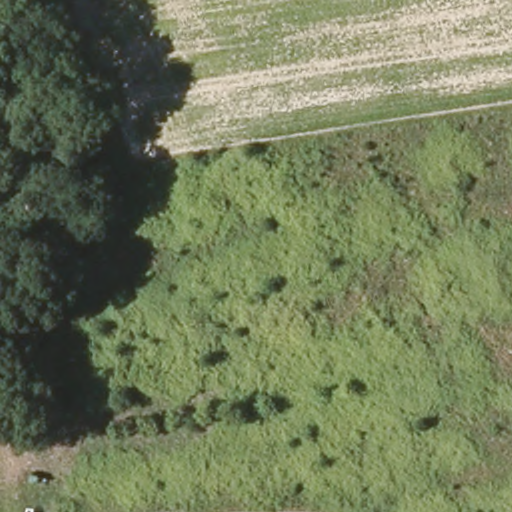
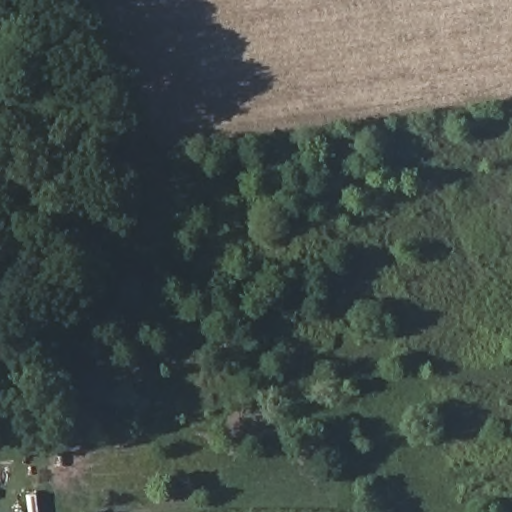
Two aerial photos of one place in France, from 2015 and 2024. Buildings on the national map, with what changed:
[]

